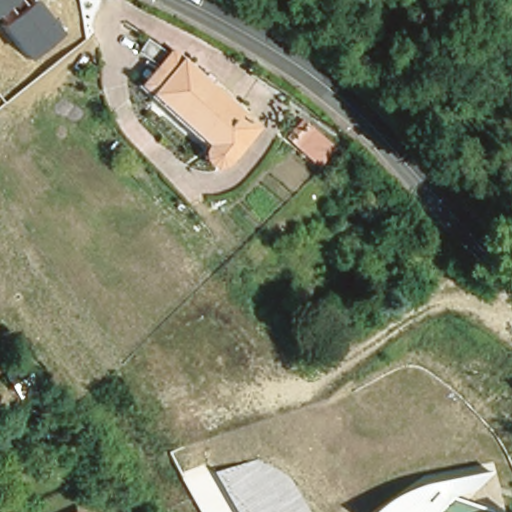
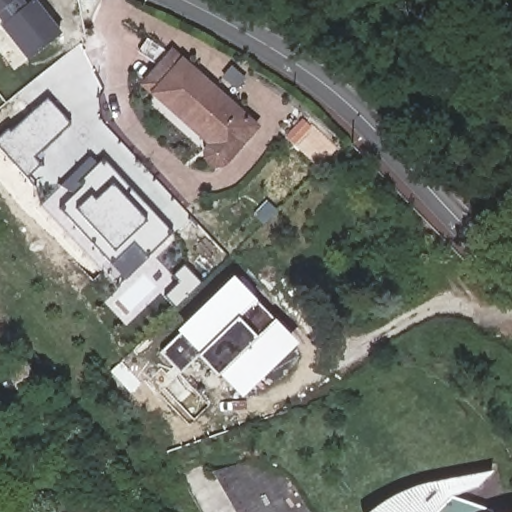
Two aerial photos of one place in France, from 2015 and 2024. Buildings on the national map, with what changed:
unchanged [(0,29),(0,24),(1,22),(0,21),(0,0),(21,0),(27,7),(34,2),(61,34),(26,61),(0,29)]
unchanged [(170,49),(253,127),(221,161),(214,167),(205,166),(198,162),(195,155),(195,148),(199,141),(200,140),(139,82),(170,49)]
new [(0,150),(0,140),(46,98),(70,124),(32,158),(39,166),(25,178),(0,150)]
unchanged [(303,122),(313,133),(296,149),(286,137),(303,122)]
new [(90,157),(96,164),(103,159),(172,232),(125,281),(61,211),(61,206),(72,195),(60,186),(90,157)]
new [(232,276),(298,342),(240,398),(218,375),(215,376),(195,355),(180,372),(160,352),(177,332),(175,331),(232,276)]
unchanged [(32,390),(17,397),(6,373),(20,365),(32,390)]
unchanged [(37,399),(49,417),(32,425),(22,407),(37,399)]
unchanged [(210,471),(256,460),(282,472),(310,512),(235,512),(210,471)]
unchanged [(378,506),(402,492),(422,485),(492,473),(473,490),(455,497),(485,512),(371,512),(378,506)]
unchanged [(87,507),(89,512),(77,512),(87,507)]

